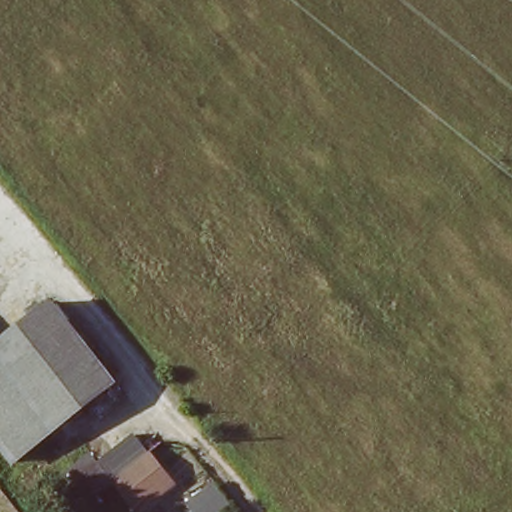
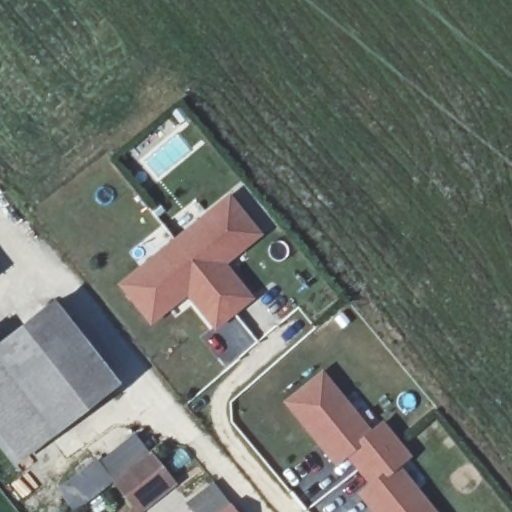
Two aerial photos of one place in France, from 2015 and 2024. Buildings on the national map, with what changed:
new [(231,192),(263,235),(227,263),(254,298),(216,330),(188,296),(151,325),(117,283),(231,192)]
unchanged [(0,340),(50,300),(65,318),(112,379),(10,460),(0,446),(0,340)]
new [(323,369),(372,428),(383,420),(412,455),(400,464),(438,512),(373,512),(358,493),(369,484),(346,457),(335,465),(282,402),(323,369)]
unchanged [(70,470),(89,454),(97,462),(138,428),(182,484),(144,512),(139,512),(118,486),(86,512),(77,512),(55,485),(30,502),(5,469),(12,465),(45,439),(70,470)]
unchanged [(228,512),(192,512),(185,503),(213,480),(233,508),(228,512)]

